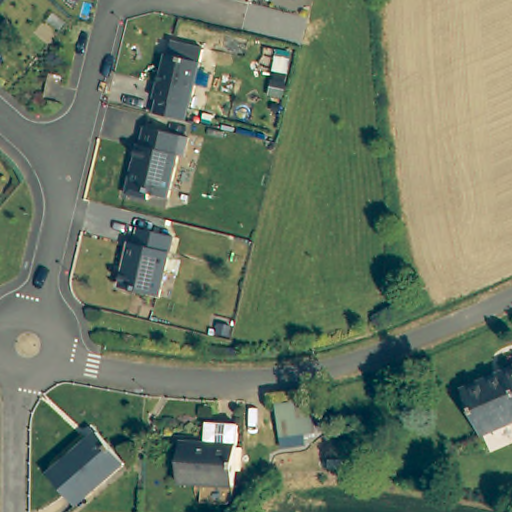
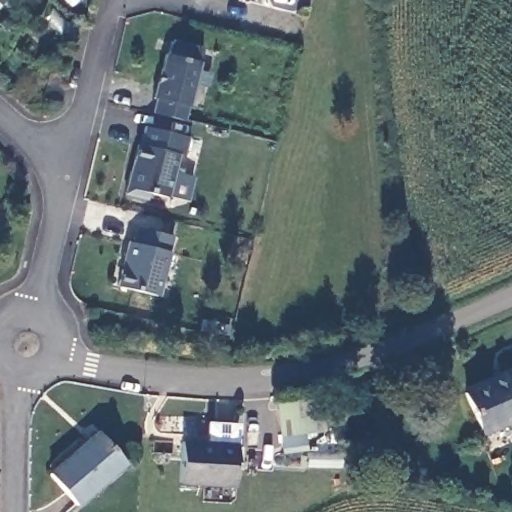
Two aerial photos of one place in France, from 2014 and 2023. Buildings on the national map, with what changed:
unchanged [(200,59),(189,104),(154,94),(166,50),(200,59)]
unchanged [(187,135),(182,154),(176,153),(165,195),(146,190),(144,196),(121,189),(127,166),(130,167),(133,156),(131,155),(135,139),(138,140),(142,123),(187,135)]
unchanged [(158,294),(118,283),(130,239),(136,240),(140,224),(174,234),(158,294)]
unchanged [(463,389),(501,372),(498,365),(512,359),(512,417),(482,431),(463,389)]
unchanged [(318,436),(275,439),(273,405),(316,402),(318,436)]
unchanged [(241,427),(238,488),(180,486),(182,444),(208,446),(209,424),(241,427)]
unchanged [(124,459),(78,504),(52,475),(99,432),(124,459)]

